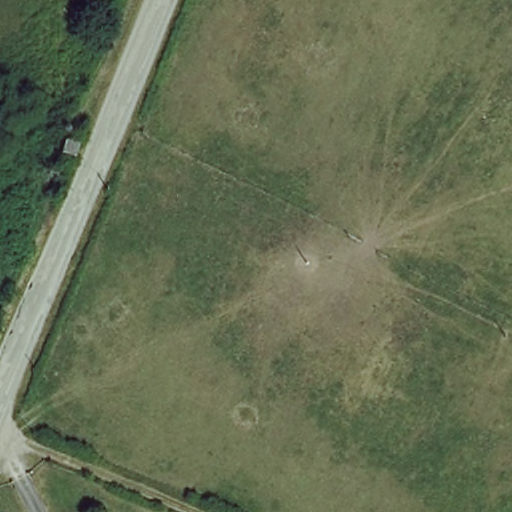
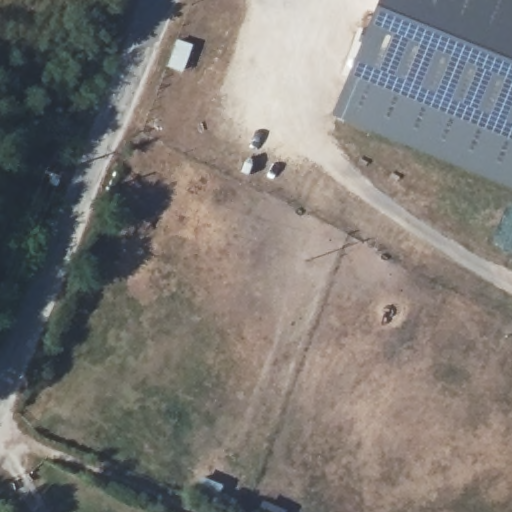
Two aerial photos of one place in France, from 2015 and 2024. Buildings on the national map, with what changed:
new [(387,0),(512,0),(512,183),(341,112),(387,0)]
unchanged [(74,165),(64,160),(70,150),(80,155),(74,165)]

